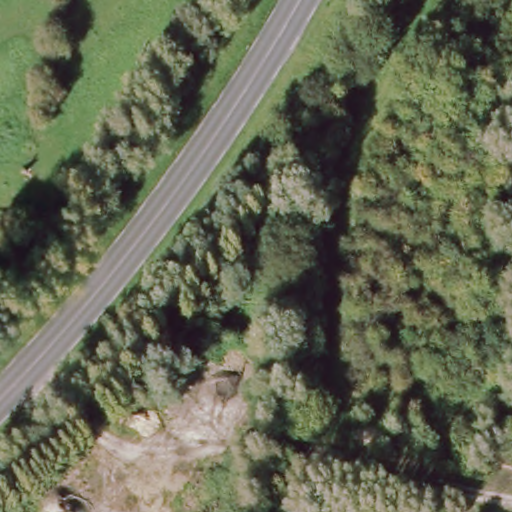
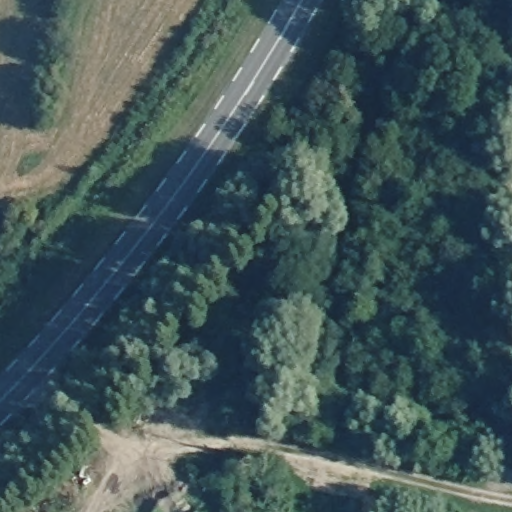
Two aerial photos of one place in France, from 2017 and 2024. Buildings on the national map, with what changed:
unchanged [(512,465),(492,458),(500,432),(512,436),(512,465)]

